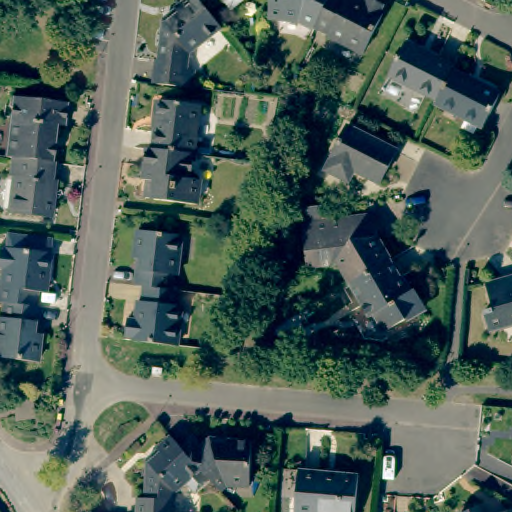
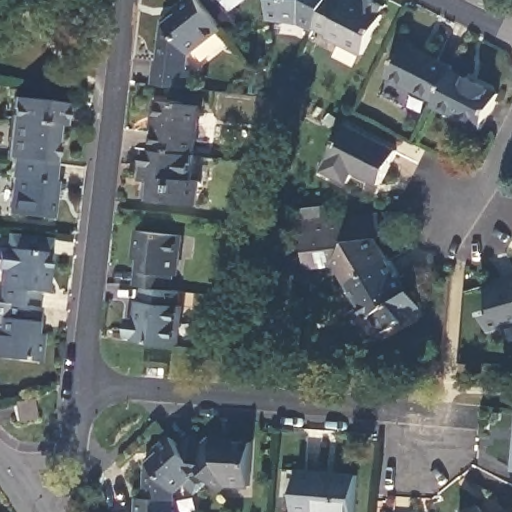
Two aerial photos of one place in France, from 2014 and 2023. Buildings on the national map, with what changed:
unchanged [(145,56),(149,56),(154,21),(168,10),(166,5),(171,0),(192,0),(211,25),(180,49),(177,66),(187,67),(184,84),(141,78),(145,56)]
unchanged [(220,5),(216,0),(227,0),(220,5)]
unchanged [(298,21),(268,17),(270,0),(329,0),(315,27),(314,30),(298,21)]
unchanged [(345,1),(345,0),(352,0),(364,6),(367,0),(369,0),(384,7),(380,16),(382,17),(363,54),(327,37),(328,35),(315,27),(329,0),(344,0),(345,1)]
unchanged [(389,77),(406,44),(454,69),(453,70),(437,102),(389,77)]
unchanged [(500,95),(482,130),(435,106),(437,102),(453,70),(500,95)]
unchanged [(7,98),(60,104),(58,127),(53,126),(48,164),(8,159),(1,158),(7,98)]
unchanged [(153,102),(194,107),(189,155),(146,150),(153,102)]
unchanged [(396,152),(380,184),(355,171),(349,182),(325,171),(348,127),(396,152)]
unchanged [(186,181),(194,182),(191,206),(148,201),(148,198),(141,197),(144,181),(140,180),(143,149),(146,150),(189,155),(190,155),(186,181)]
unchanged [(46,182),(50,182),(46,217),(5,212),(8,179),(6,178),(8,159),(48,164),(46,182)]
unchanged [(301,225),(298,201),(335,197),(338,221),(349,219),(372,217),(375,239),(388,261),(348,283),(336,262),(304,265),(302,241),(301,225)]
unchanged [(128,267),(131,267),(133,256),(125,255),(128,227),(170,232),(166,271),(162,271),(160,287),(133,283),(126,282),(128,267)]
unchanged [(33,292),(31,307),(0,304),(0,251),(1,252),(3,234),(48,239),(41,293),(33,292)]
unchanged [(407,295),(413,292),(420,302),(415,317),(402,323),(400,320),(379,331),(370,315),(365,317),(348,283),(388,261),(407,295)]
unchanged [(489,332),(483,313),(491,310),(483,282),(512,273),(512,326),(489,332)]
unchanged [(123,332),(115,332),(116,313),(125,314),(127,297),(131,297),(133,283),(160,287),(169,287),(167,303),(171,303),(166,342),(122,337),(123,332)]
unchanged [(29,323),(27,334),(36,335),(33,362),(0,359),(0,304),(31,307),(33,307),(31,323),(29,323)]
unchanged [(31,419),(16,421),(15,403),(30,402),(31,419)]
unchanged [(186,437),(195,447),(206,439),(210,443),(224,443),(225,441),(246,441),(242,483),(222,483),(213,491),(194,471),(174,448),(186,437)]
unchanged [(169,512),(132,512),(133,499),(141,499),(142,464),(154,452),(151,450),(165,438),(174,448),(194,471),(171,491),(169,512)]
unchanged [(350,512),(291,512),(294,476),(353,481),(350,512)]
unchanged [(482,512),(465,512),(480,506),(482,512)]
unchanged [(506,512),(512,509),(512,512),(506,512)]

